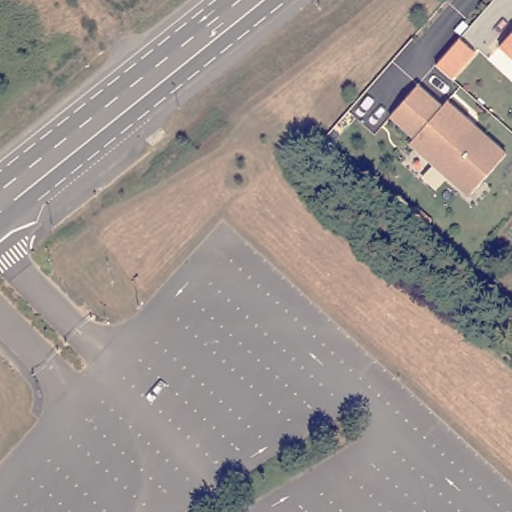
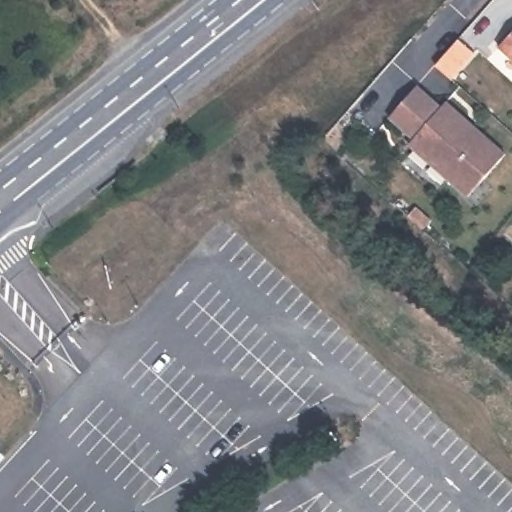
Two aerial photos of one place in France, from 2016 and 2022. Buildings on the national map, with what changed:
unchanged [(476,52),(453,77),(438,64),(461,37),(476,52)]
unchanged [(512,48),(512,65),(504,58),(512,48)]
unchanged [(443,105),(448,100),(505,151),(466,196),(409,144),(414,138),(391,117),(419,84),(443,105)]
unchanged [(400,193),(429,218),(421,227),(392,202),(400,193)]

